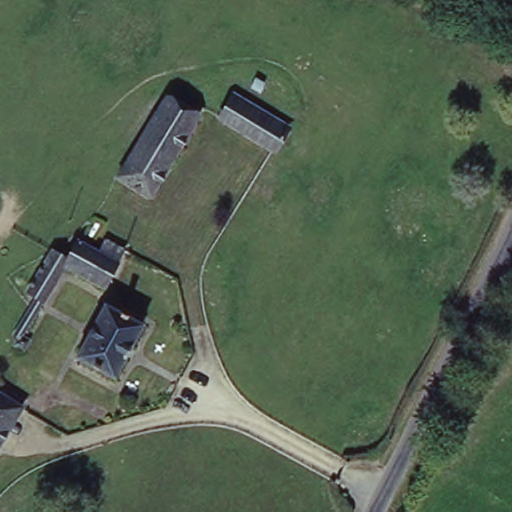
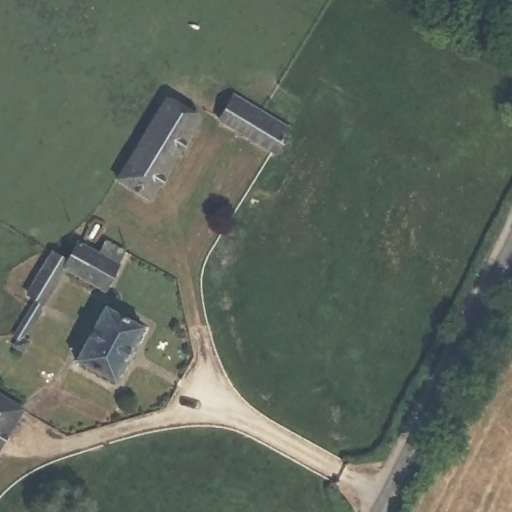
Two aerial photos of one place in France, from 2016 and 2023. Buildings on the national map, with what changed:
unchanged [(287,125),(271,149),(214,116),(228,93),(287,125)]
unchanged [(150,187),(115,169),(161,96),(197,115),(150,187)]
unchanged [(97,247),(105,232),(131,248),(110,280),(73,257),(84,240),(97,247)]
unchanged [(27,327),(27,328),(32,332),(27,341),(19,337),(11,332),(33,296),(30,291),(37,281),(43,281),(48,272),(42,268),(56,247),(73,257),(27,327)]
unchanged [(105,305),(140,324),(114,375),(77,356),(105,305)]
unchanged [(26,403),(0,447),(0,389),(26,403)]

